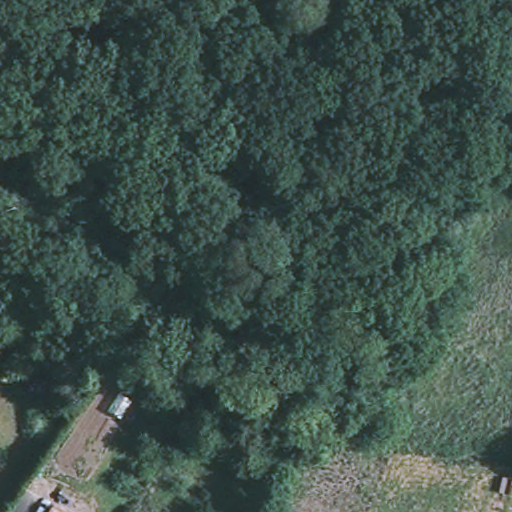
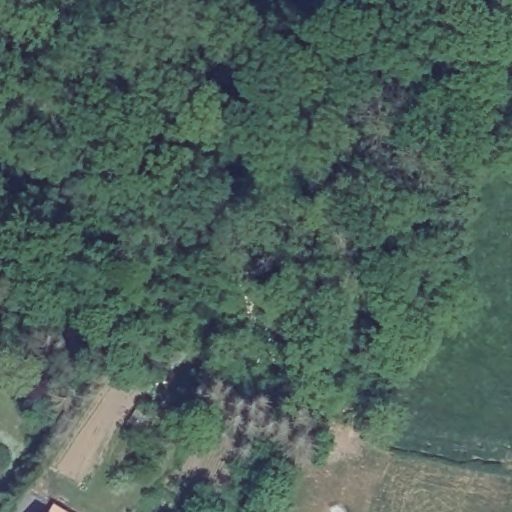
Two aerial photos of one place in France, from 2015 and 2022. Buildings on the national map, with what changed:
unchanged [(58,504),(72,512),(52,512),(58,504)]

